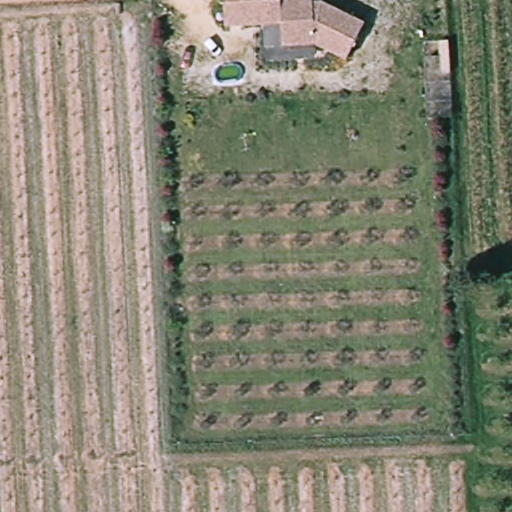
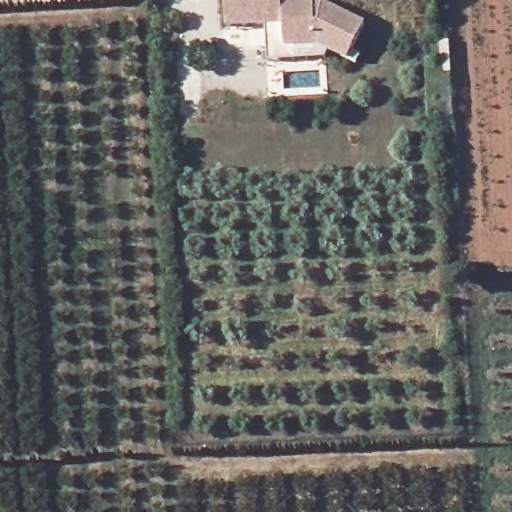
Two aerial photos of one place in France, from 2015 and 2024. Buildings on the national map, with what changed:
unchanged [(283,0),(289,0),(315,0),(315,4),(324,3),(366,23),(350,58),(319,44),(286,46),(285,23),(228,27),(226,0),(283,0)]

